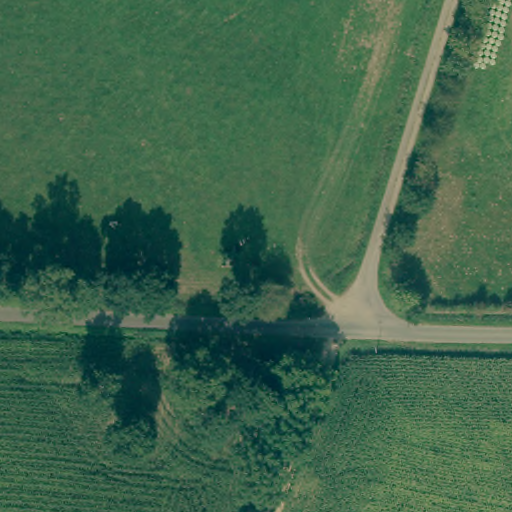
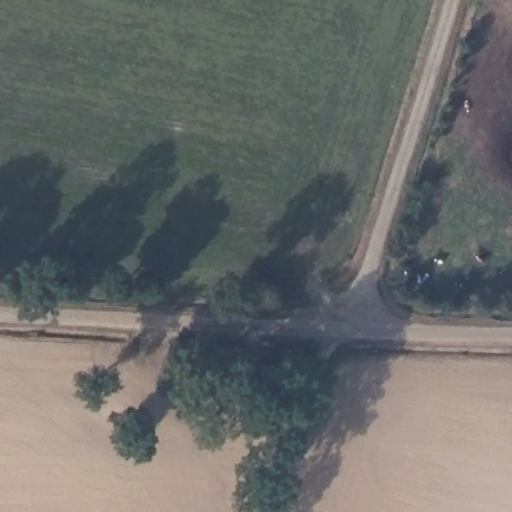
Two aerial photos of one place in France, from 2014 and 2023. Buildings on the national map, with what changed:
[]

